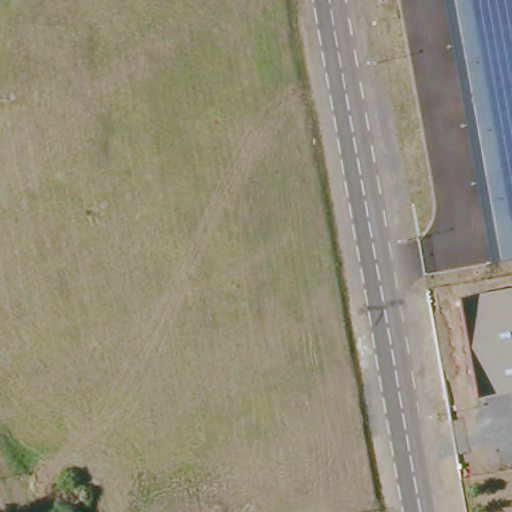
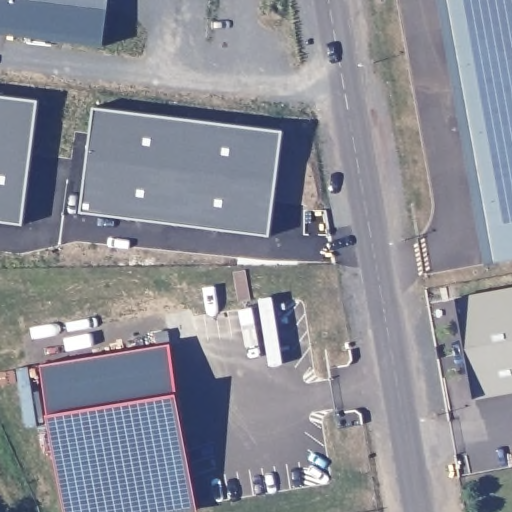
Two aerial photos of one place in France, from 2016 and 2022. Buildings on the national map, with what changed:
new [(0,37),(0,0),(109,0),(103,50),(0,37)]
unchanged [(512,0),(512,258),(485,263),(439,0),(512,0)]
new [(23,226),(0,223),(0,97),(39,102),(23,226)]
new [(93,110),(281,133),(268,238),(80,215),(93,110)]
unchanged [(472,400),(456,299),(512,288),(512,393),(472,400)]
new [(194,512),(70,512),(54,412),(184,391),(202,505),(203,511),(194,512)]

